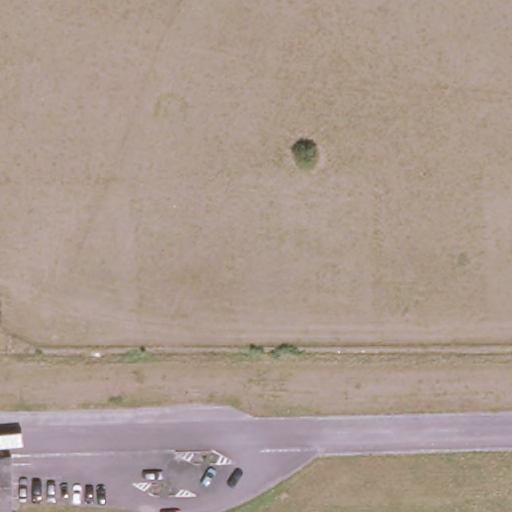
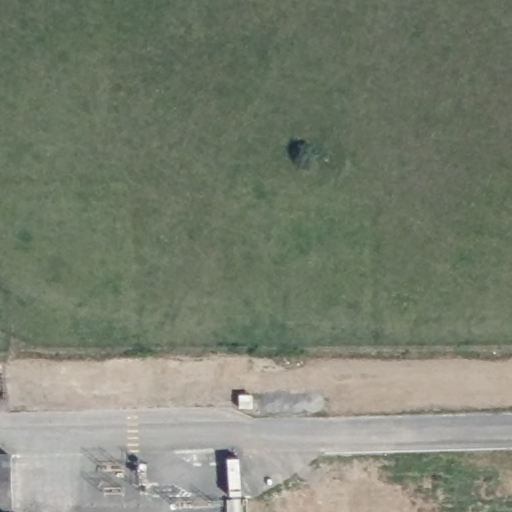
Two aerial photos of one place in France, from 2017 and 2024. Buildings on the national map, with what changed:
unchanged [(8,455),(9,507),(0,507),(0,455),(8,455)]

